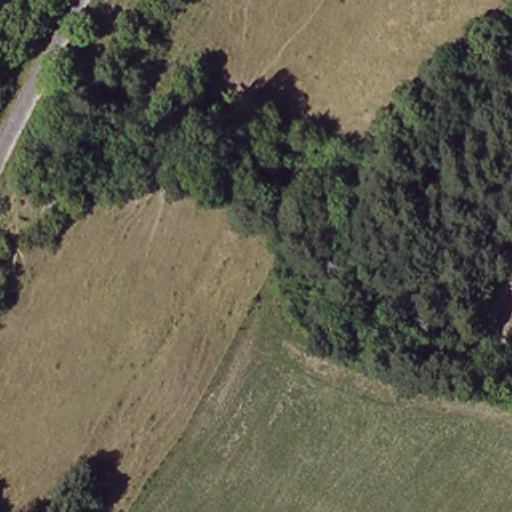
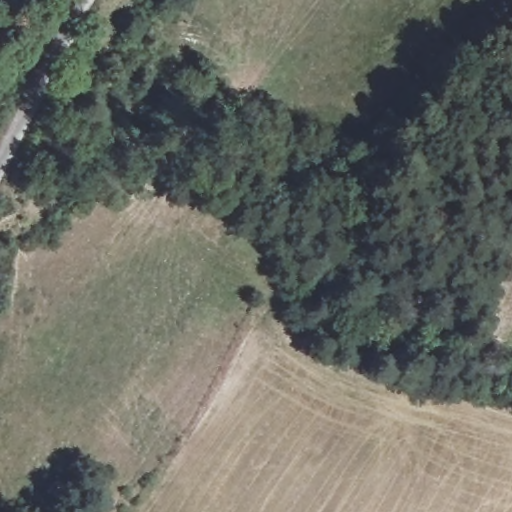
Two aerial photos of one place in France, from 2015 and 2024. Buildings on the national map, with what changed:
[]

